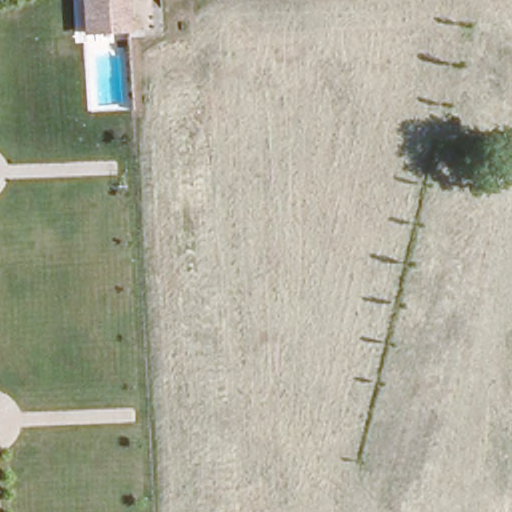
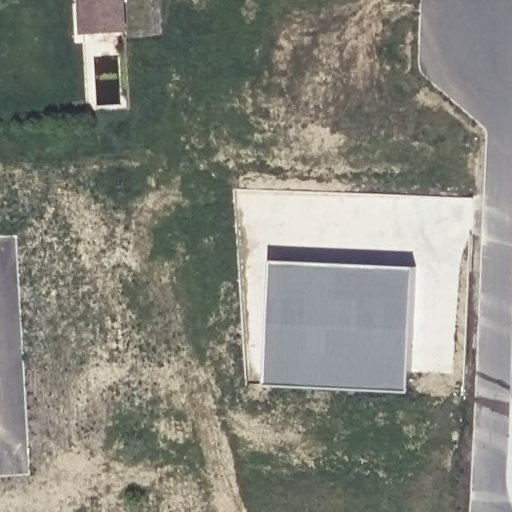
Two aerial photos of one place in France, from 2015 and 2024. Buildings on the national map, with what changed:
unchanged [(82,34),(81,0),(129,0),(130,32),(82,34)]
new [(410,267),(407,391),(262,386),(267,262),(410,267)]

